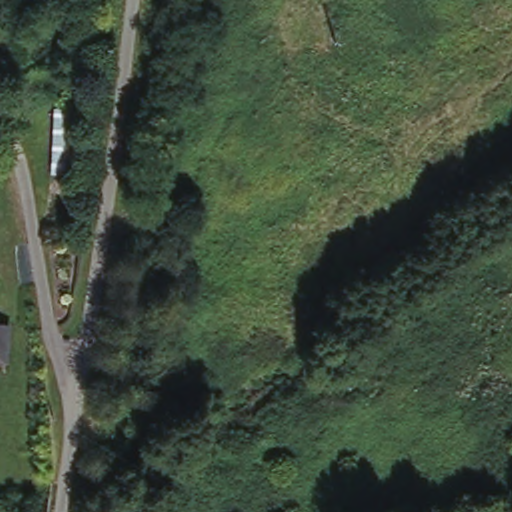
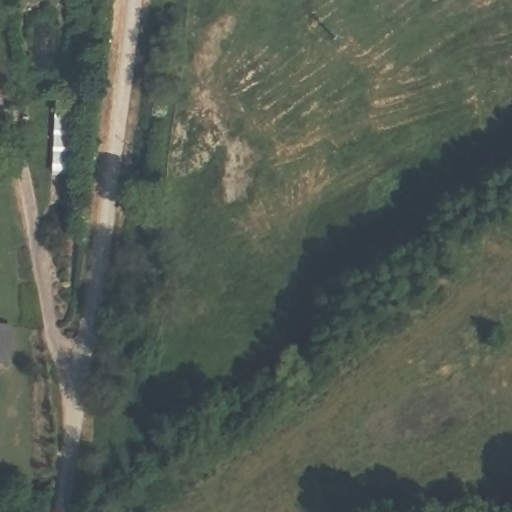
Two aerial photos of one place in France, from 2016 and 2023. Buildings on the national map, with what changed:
unchanged [(75,110),(71,206),(48,204),(54,115),(75,110)]
unchanged [(12,321),(9,362),(0,362),(0,321),(12,321)]

